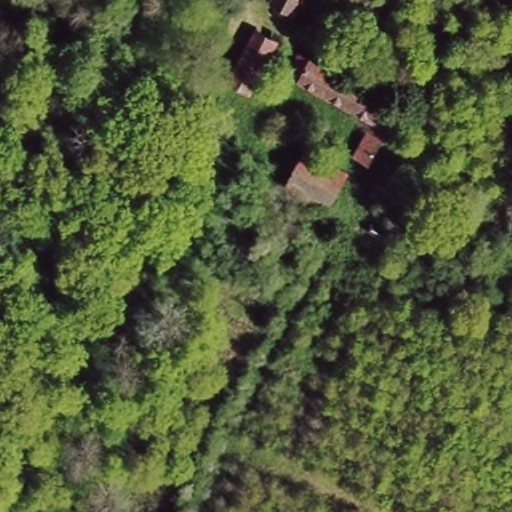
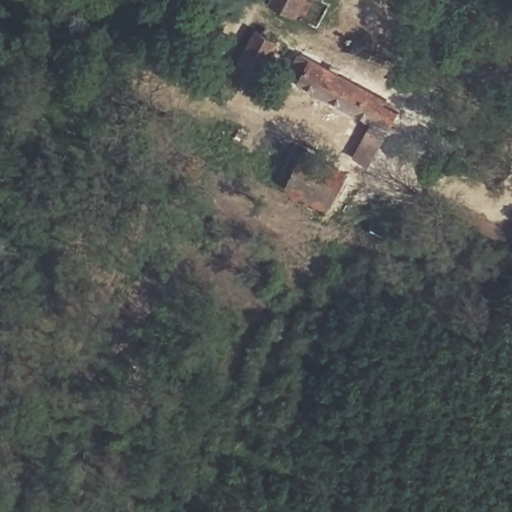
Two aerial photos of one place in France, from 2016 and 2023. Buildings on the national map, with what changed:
unchanged [(323,5),(311,26),(267,0),(315,0),(323,5)]
unchanged [(208,30),(219,9),(231,16),(220,37),(208,30)]
unchanged [(225,62),(236,41),(244,27),(280,45),(251,98),(216,79),(225,62)]
unchanged [(402,101),(394,117),(364,172),(349,164),(371,121),(288,79),(301,51),(402,101)]
unchanged [(304,146),(349,169),(331,210),(282,188),(304,146)]

